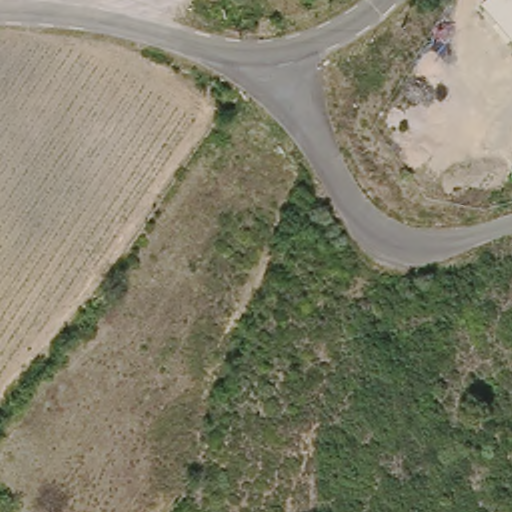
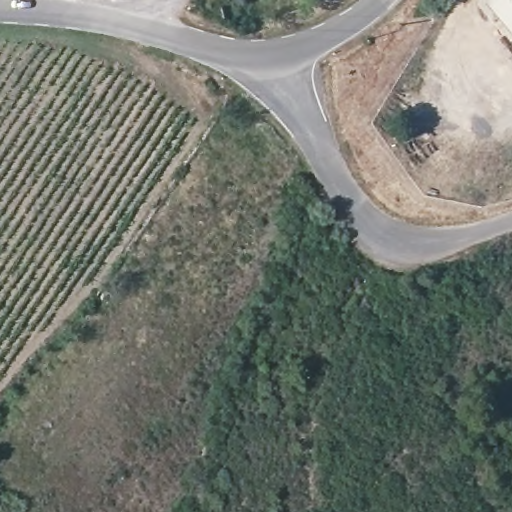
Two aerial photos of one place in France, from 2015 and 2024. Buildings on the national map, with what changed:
unchanged [(512,0),(512,31),(485,0),(512,0)]

